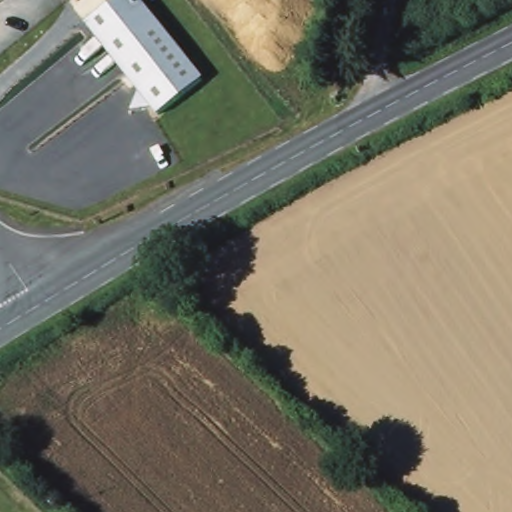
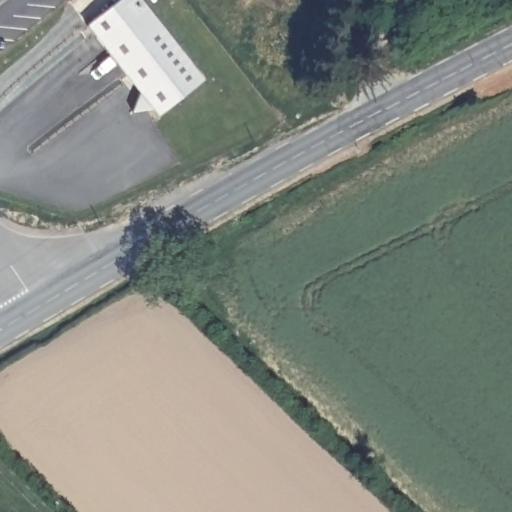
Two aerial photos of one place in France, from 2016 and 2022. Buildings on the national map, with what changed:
unchanged [(201,76),(158,109),(137,112),(145,94),(87,22),(116,0),(140,0),(201,76)]

